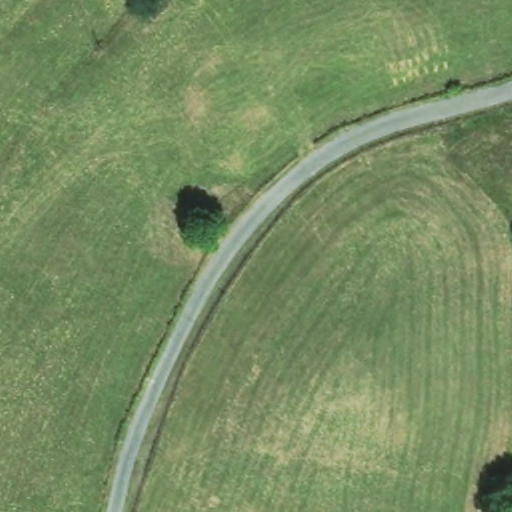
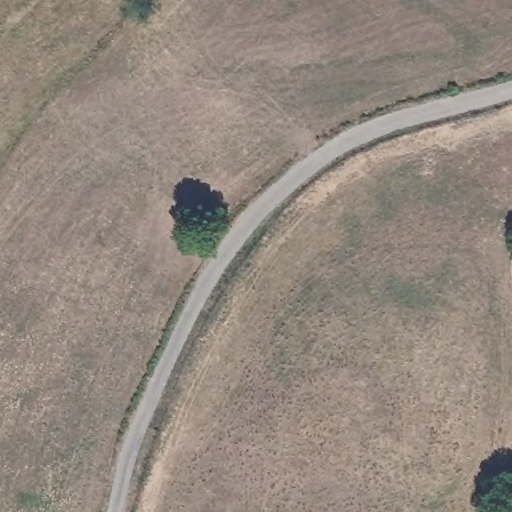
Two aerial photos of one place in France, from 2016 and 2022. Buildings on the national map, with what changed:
[]

